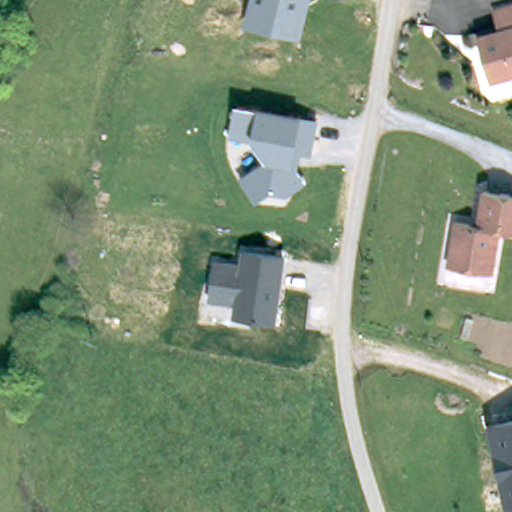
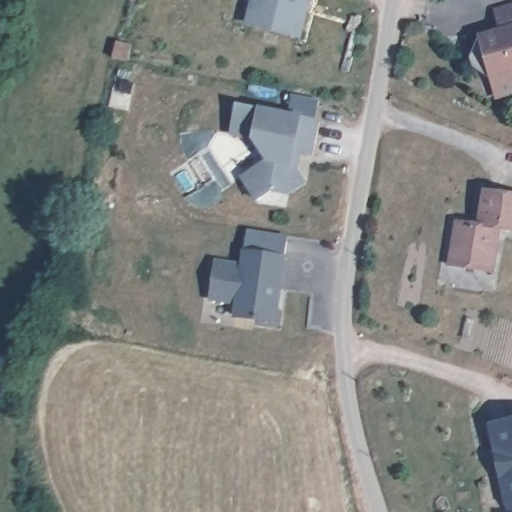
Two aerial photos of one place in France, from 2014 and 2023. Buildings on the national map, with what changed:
unchanged [(301,40),(245,26),(250,0),(310,0),(301,40)]
unchanged [(499,27),(495,10),(512,5),(512,70),(500,73),(494,75),(493,71),(482,31),(499,27)]
unchanged [(263,157),(252,139),(230,135),(235,104),(258,107),(302,116),(318,120),(312,155),(301,152),(298,171),(306,182),(286,196),(270,192),(255,202),(241,175),(263,157)]
unchanged [(485,220),(489,190),(512,194),(512,231),(505,230),(497,272),(460,266),(455,265),(461,221),(465,222),(479,224),(485,220)]
unchanged [(241,262),(243,249),(285,257),(275,324),(233,316),(235,302),(210,301),(215,260),(241,262)]
unchanged [(512,512),(510,512),(504,505),(487,425),(512,420),(512,512)]

